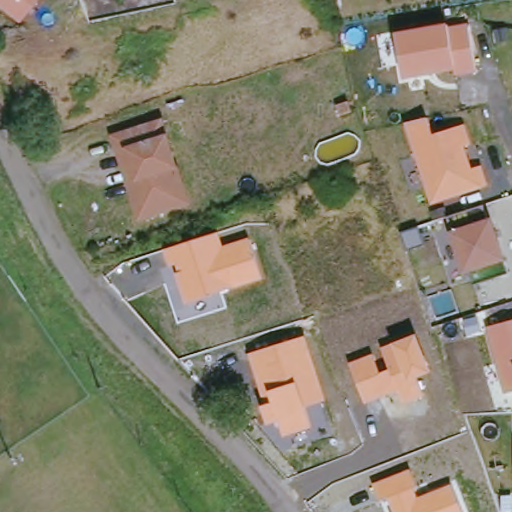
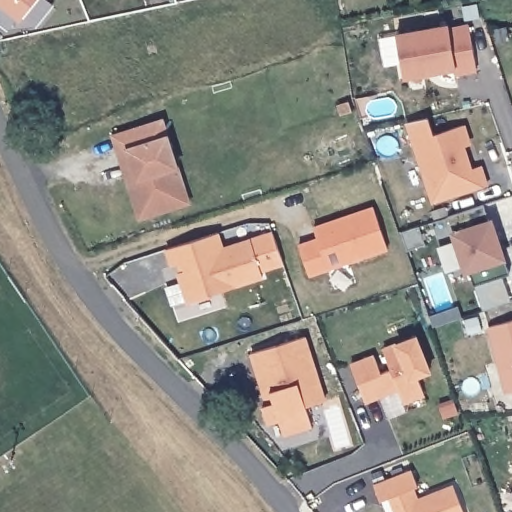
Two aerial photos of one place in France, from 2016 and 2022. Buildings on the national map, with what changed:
unchanged [(20,19),(0,4),(0,0),(34,0),(20,19)]
unchanged [(447,25),(448,27),(468,25),(474,70),(454,74),(453,70),(403,79),(395,34),(447,25)]
unchanged [(428,115),(433,131),(465,124),(471,146),(463,149),(468,167),(480,164),(487,187),(430,206),(405,120),(428,115)]
unchanged [(135,205),(111,135),(156,120),(182,201),(159,210),(138,217),(135,205)]
new [(317,237),(313,226),(373,206),(388,250),(310,276),(299,244),(317,237)]
unchanged [(472,210),(476,222),(492,218),(506,272),(471,281),(469,274),(461,275),(446,216),(472,210)]
unchanged [(217,232),(221,247),(251,237),(261,276),(182,300),(175,274),(177,272),(174,265),(166,265),(162,250),(217,232)]
unchanged [(512,391),(502,393),(484,328),(512,321),(512,391)]
unchanged [(374,353),(381,373),(388,370),(382,347),(418,333),(430,372),(417,375),(422,395),(400,401),(396,392),(363,402),(350,361),(374,353)]
unchanged [(307,335),(325,399),(304,406),(310,428),(281,434),(276,420),(265,422),(261,405),(270,402),(267,393),(262,395),(248,351),(307,335)]
unchanged [(417,490),(414,491),(416,497),(450,485),(460,512),(389,512),(388,510),(391,509),(387,500),(376,502),(370,483),(410,468),(417,490)]

